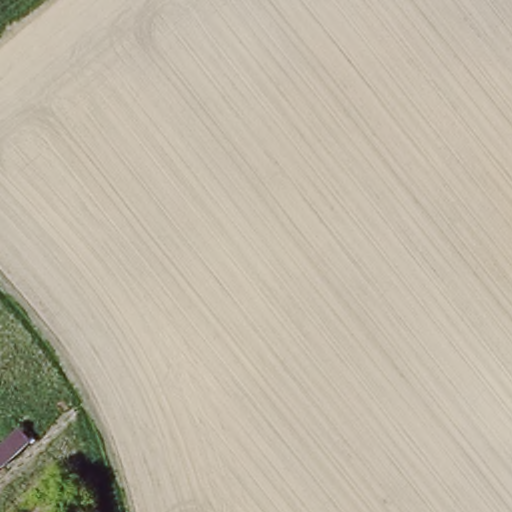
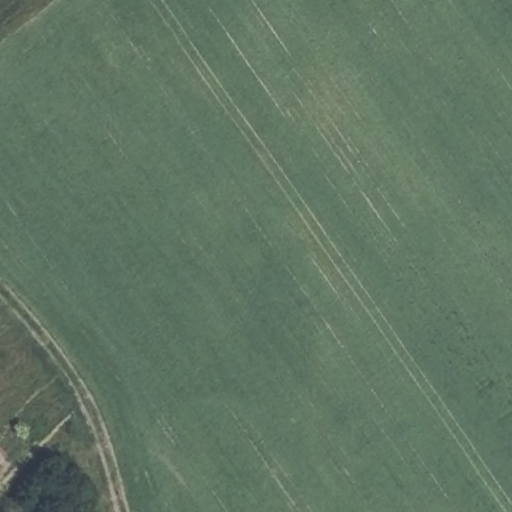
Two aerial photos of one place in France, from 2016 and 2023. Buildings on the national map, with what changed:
[]

